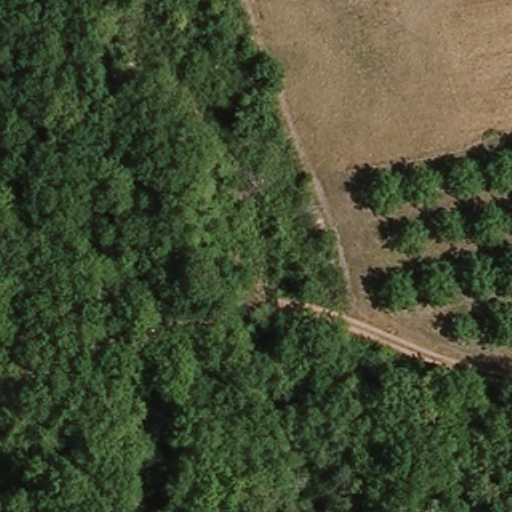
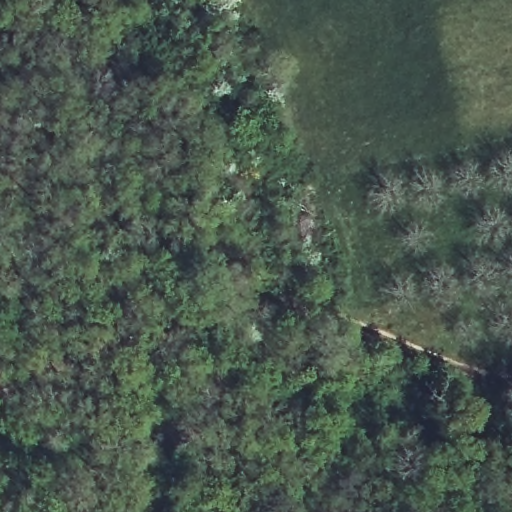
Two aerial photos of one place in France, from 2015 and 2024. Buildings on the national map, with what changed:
unchanged [(462,349),(445,351),(443,334),(460,332),(462,349)]

